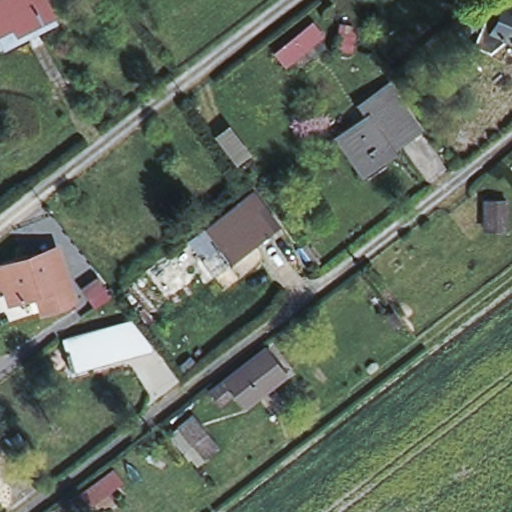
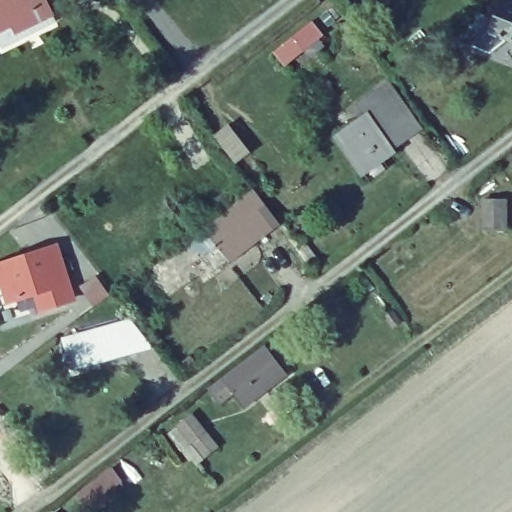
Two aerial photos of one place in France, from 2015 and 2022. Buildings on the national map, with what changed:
unchanged [(0,0),(46,0),(54,16),(16,34),(1,42),(0,40),(0,0)]
unchanged [(487,13),(490,4),(492,5),(494,0),(512,0),(512,34),(509,33),(490,48),(487,45),(474,41),(485,13),(487,13)]
unchanged [(310,55),(305,48),(287,63),(277,50),(312,21),(322,34),(319,37),(325,44),(310,55)]
unchanged [(363,174),(356,164),(338,140),(369,118),(358,105),(374,93),(375,94),(387,86),(394,95),(395,94),(416,122),(422,131),(363,174)]
unchanged [(228,124),(249,152),(236,163),(214,134),(228,124)]
unchanged [(191,240),(203,230),(253,191),(280,225),(230,264),(214,244),(202,254),(191,240)]
unchanged [(485,225),(485,217),(485,197),(505,197),(505,217),(505,225),(485,225)]
unchanged [(4,302),(0,290),(0,263),(50,247),(67,299),(49,305),(37,309),(32,292),(4,302)]
unchanged [(67,358),(66,352),(67,352),(65,338),(112,326),(129,321),(139,349),(120,354),(94,360),(69,367),(67,358)]
unchanged [(284,371),(245,401),(225,376),(265,346),(284,371)]
unchanged [(215,441),(197,455),(190,448),(172,427),(191,411),(215,441)]
unchanged [(122,482),(89,507),(80,494),(112,470),(122,482)]
unchanged [(51,512),(54,510),(55,512),(51,512)]

